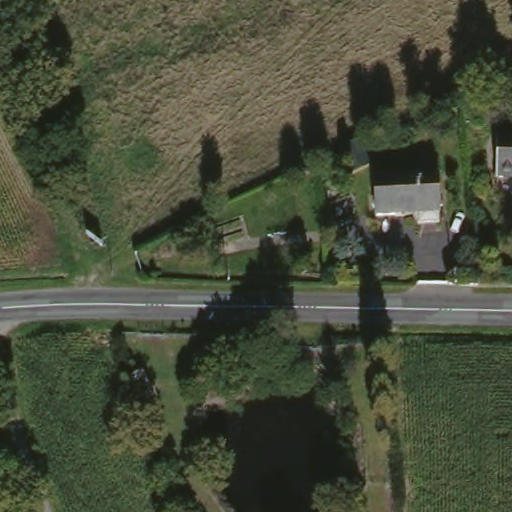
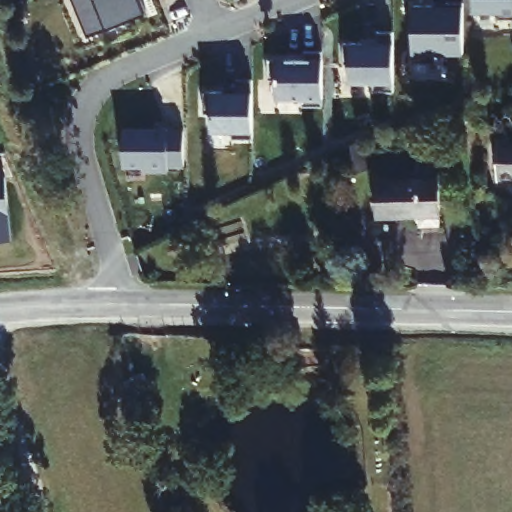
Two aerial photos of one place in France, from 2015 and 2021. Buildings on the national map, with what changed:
new [(77,12),(71,0),(140,0),(146,13),(125,21),(87,37),(86,35),(77,12)]
new [(512,0),(512,20),(498,20),(498,14),(473,14),(473,0),(512,0)]
new [(434,5),(434,2),(446,2),(463,2),(463,53),(435,53),(435,63),(412,63),(413,5),(434,5)]
new [(343,43),(377,43),(377,32),(393,32),(393,92),(372,92),(372,82),(349,82),(349,65),(343,65),(343,43)]
new [(268,55),(305,55),(305,47),(323,47),(323,105),(303,105),(303,96),(276,96),(276,77),(268,77),(268,55)]
new [(211,90),(235,90),(236,80),(252,80),(253,91),(253,130),(253,139),(231,139),(230,131),(211,131),(211,90)]
new [(167,130),(167,131),(183,131),(183,166),(168,166),(168,171),(145,171),(145,166),(123,166),(122,130),(167,130)]
unchanged [(512,136),(512,173),(486,171),(487,135),(512,136)]
unchanged [(420,220),(419,210),(419,206),(396,206),(396,212),(374,213),(373,175),(439,174),(440,210),(438,210),(439,219),(420,220)]
new [(9,241),(0,242),(0,177),(3,177),(9,241)]
unchanged [(150,388),(136,393),(131,396),(126,381),(133,378),(144,374),(150,388)]

